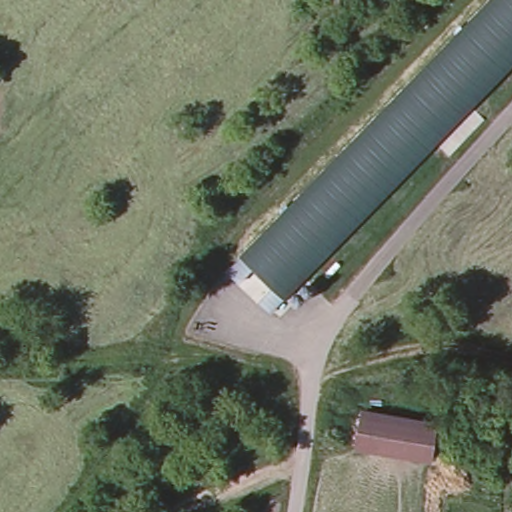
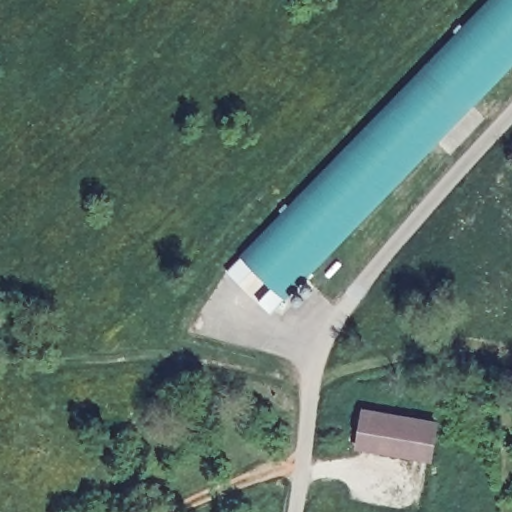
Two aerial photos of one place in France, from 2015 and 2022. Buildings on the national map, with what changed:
unchanged [(257,298),(272,283),(254,266),(239,281),(227,268),(485,0),(512,0),(512,62),(270,311),(257,298)]
unchanged [(280,392),(277,401),(270,399),(273,390),(280,392)]
unchanged [(420,457),(410,455),(413,438),(395,436),(380,433),(377,450),(369,448),(358,447),(364,410),(375,412),(398,416),(423,420),(435,422),(430,458),(420,457)]

